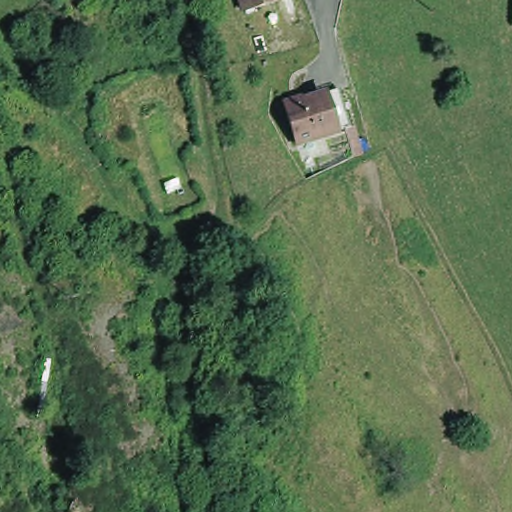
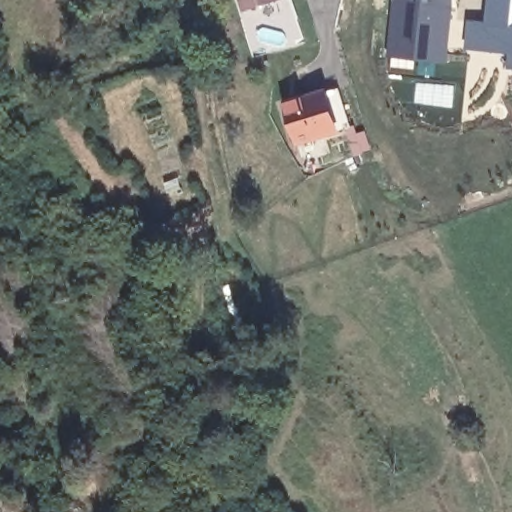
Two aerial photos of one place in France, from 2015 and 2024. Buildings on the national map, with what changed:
unchanged [(245,15),(240,0),(280,0),(282,3),(245,15)]
new [(452,0),(448,29),(445,64),(436,62),(434,75),(385,67),(388,0),(452,0)]
new [(483,20),(486,0),(512,0),(512,11),(511,24),(512,24),(512,68),(505,67),(507,54),(462,50),(465,19),(483,20)]
new [(511,24),(512,11),(512,24),(511,24)]
unchanged [(291,149),(279,111),(332,95),(343,132),(291,149)]
new [(355,125),(357,131),(365,129),(371,150),(352,156),(343,128),(355,125)]

